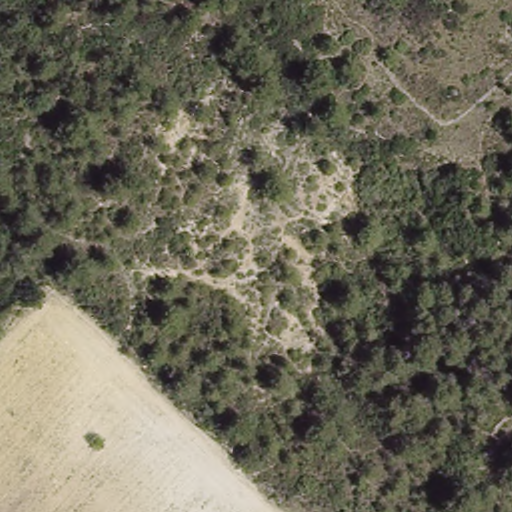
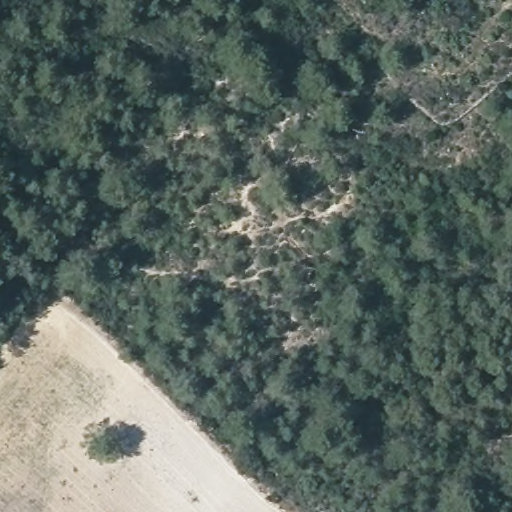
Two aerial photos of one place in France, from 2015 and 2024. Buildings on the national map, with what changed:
[]

